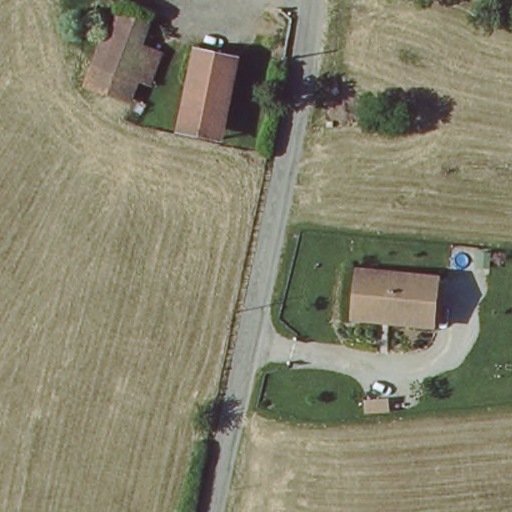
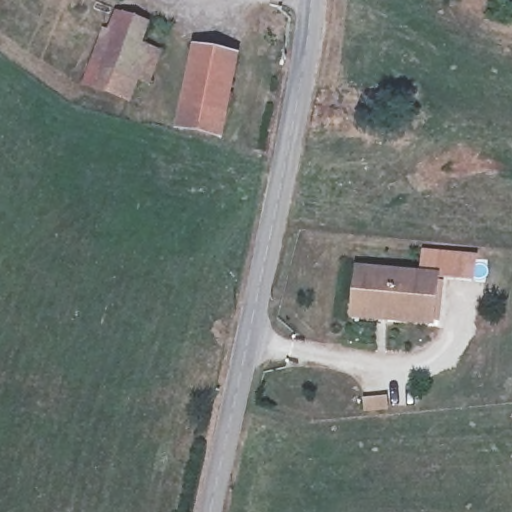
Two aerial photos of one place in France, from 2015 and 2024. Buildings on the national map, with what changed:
unchanged [(152,81),(138,77),(130,97),(85,80),(104,25),(112,27),(117,14),(148,26),(142,43),(149,45),(162,50),(152,81)]
unchanged [(195,50),(235,59),(220,139),(178,130),(195,50)]
unchanged [(353,302),(358,270),(438,279),(432,327),(387,321),(351,316),(353,302)]

